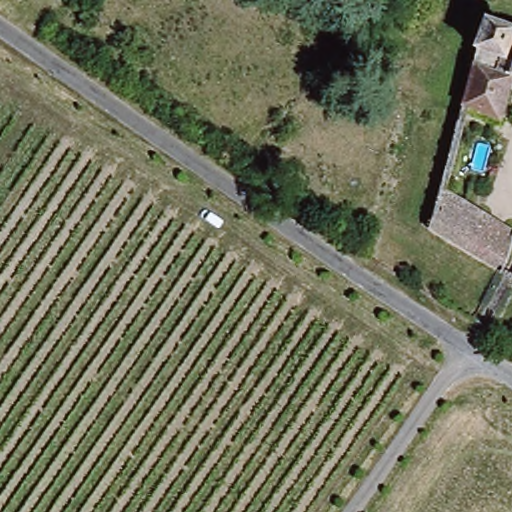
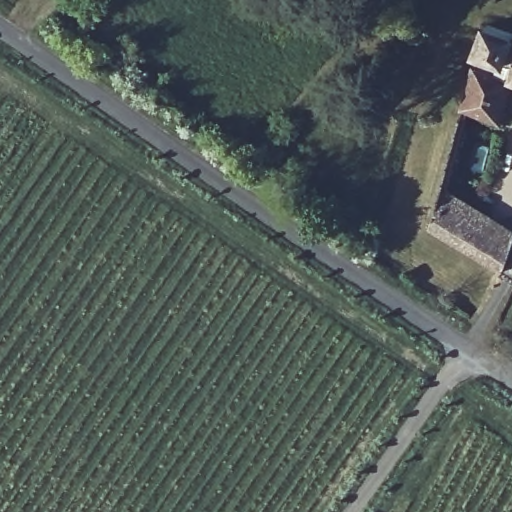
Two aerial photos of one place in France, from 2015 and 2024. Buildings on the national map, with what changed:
unchanged [(463,116),(488,33),(512,41),(512,96),(500,129),(463,116)]
unchanged [(512,228),(512,245),(501,267),(429,229),(441,194),(512,228)]

